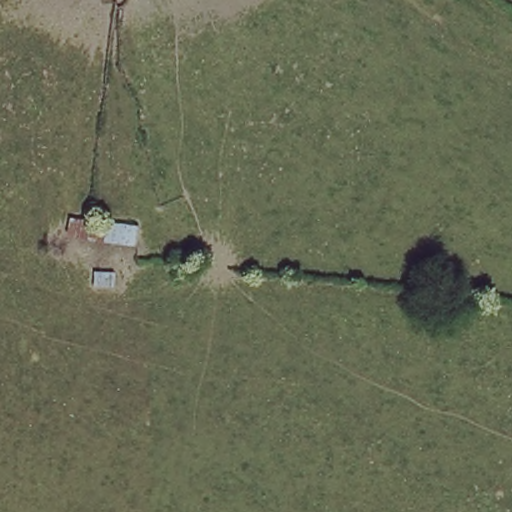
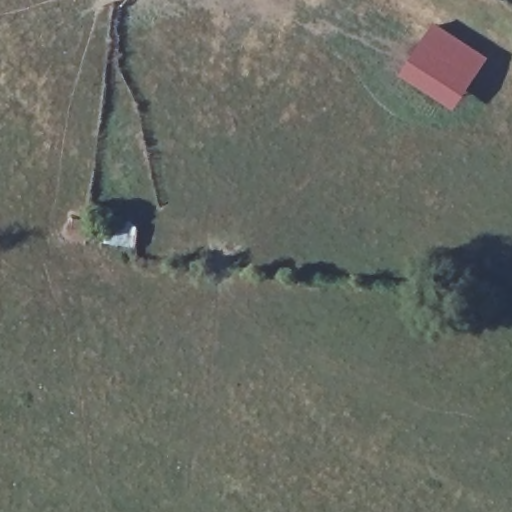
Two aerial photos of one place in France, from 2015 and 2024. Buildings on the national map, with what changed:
new [(483,62),(456,103),(406,67),(432,26),(483,62)]
unchanged [(70,216),(135,230),(131,247),(65,234),(70,216)]

